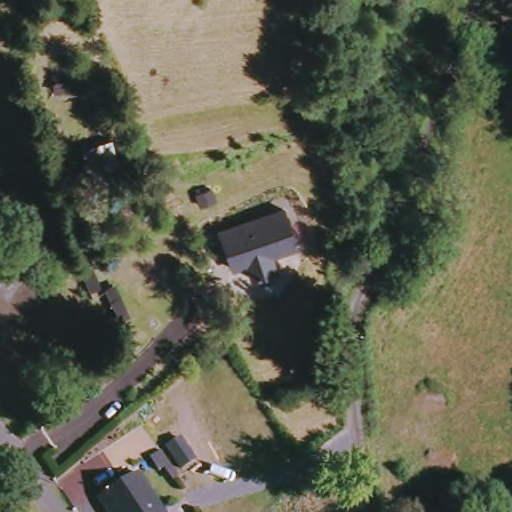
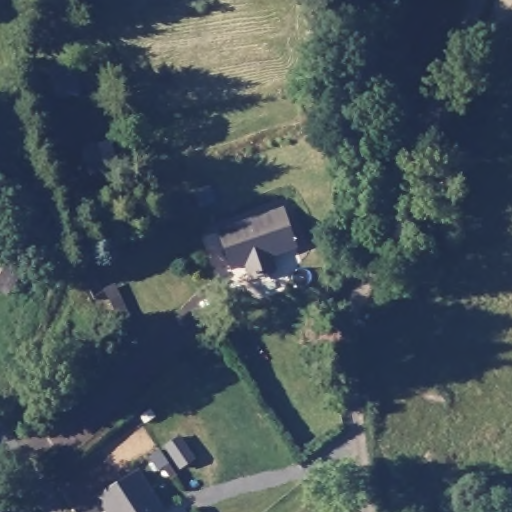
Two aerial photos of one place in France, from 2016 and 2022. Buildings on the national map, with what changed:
unchanged [(195,192),(205,188),(210,200),(199,203),(195,192)]
unchanged [(282,212),(295,250),(270,258),(275,272),(250,280),(246,266),(232,271),(219,234),(282,212)]
unchanged [(29,265),(10,291),(0,284),(0,259),(7,249),(29,265)]
unchanged [(174,476),(166,465),(161,467),(152,453),(162,446),(170,461),(179,473),(174,476)]
unchanged [(139,473),(162,511),(163,512),(107,512),(99,499),(139,473)]

